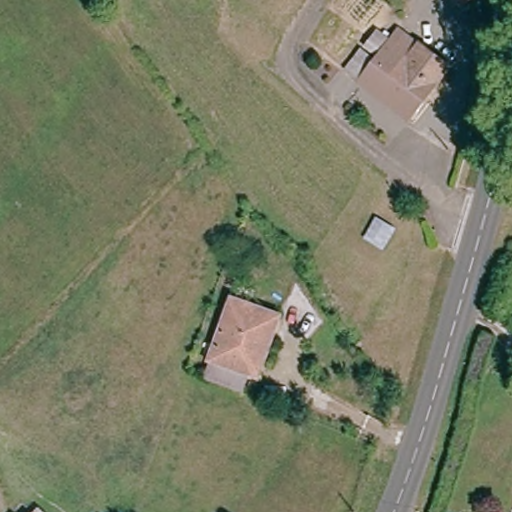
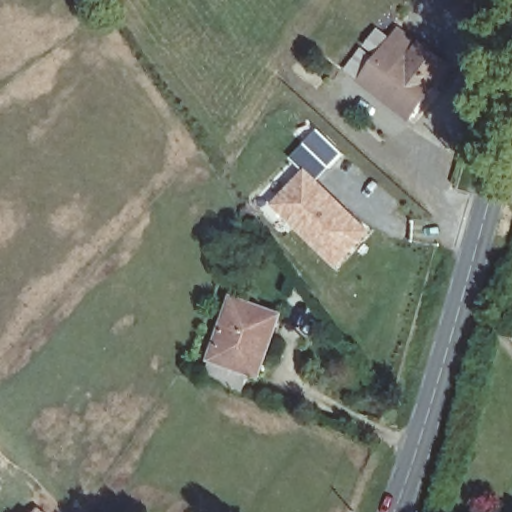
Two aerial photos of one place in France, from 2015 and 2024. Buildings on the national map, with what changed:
unchanged [(395,32),(415,43),(441,63),(405,116),(358,81),(384,47),(395,32)]
new [(335,267),(271,205),(306,168),(370,231),(335,267)]
unchanged [(209,373),(215,357),(235,301),(282,316),(272,341),(261,374),(250,370),(245,386),(209,373)]
unchanged [(41,512),(35,512),(38,509),(41,512)]

